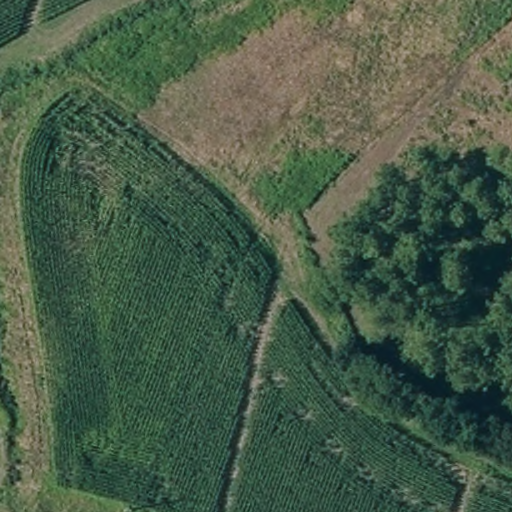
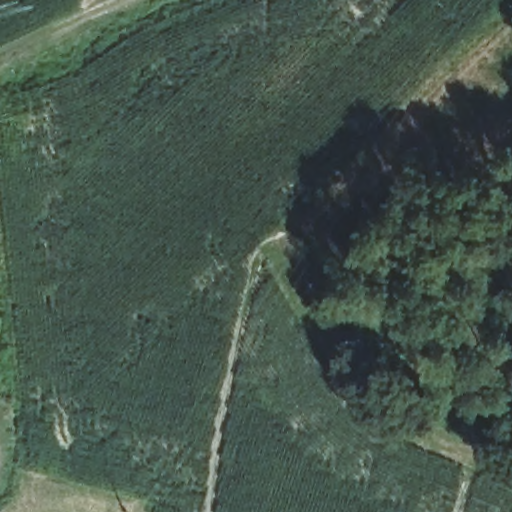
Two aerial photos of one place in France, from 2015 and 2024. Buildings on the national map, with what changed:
[]

